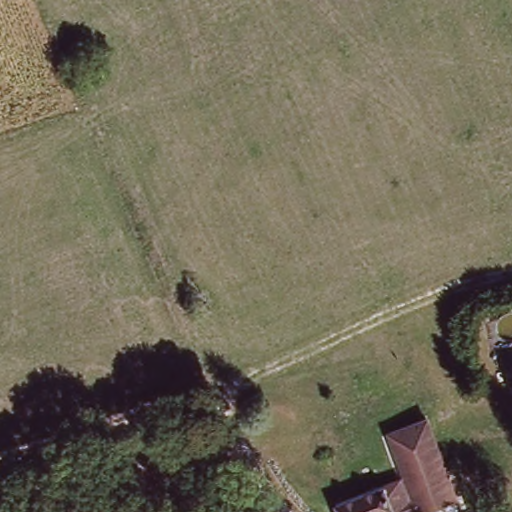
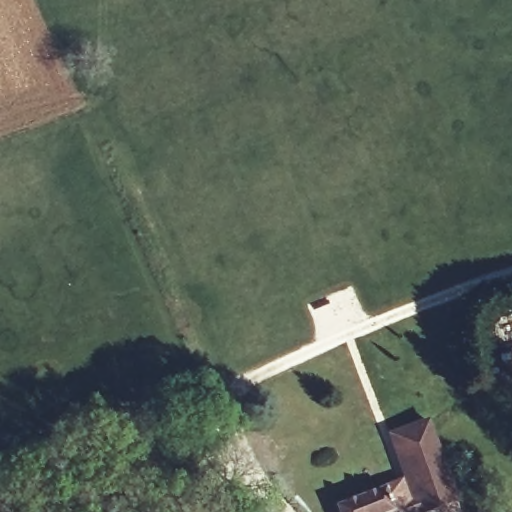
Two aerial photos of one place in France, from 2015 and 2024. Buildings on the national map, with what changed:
unchanged [(390,437),(428,421),(451,477),(409,483),(390,437)]
unchanged [(428,512),(421,512),(421,511),(419,512),(392,512),(412,503),(413,506),(418,505),(409,483),(451,477),(459,498),(428,512)]
unchanged [(412,503),(392,512),(361,512),(357,503),(403,483),(412,503)]
unchanged [(340,511),(357,503),(361,512),(340,512),(340,511)]

